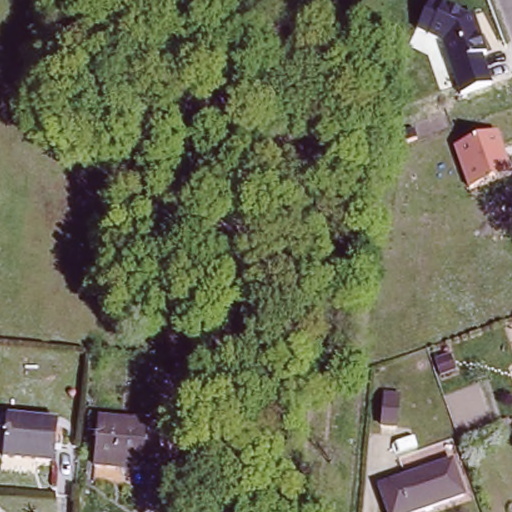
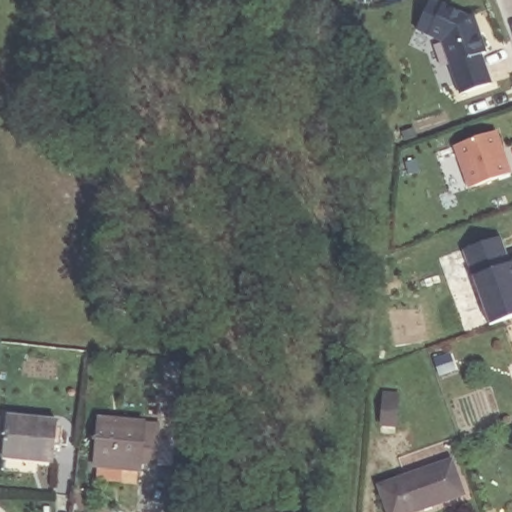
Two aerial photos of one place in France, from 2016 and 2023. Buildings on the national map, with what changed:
unchanged [(440,43),(415,29),(429,0),(430,0),(467,17),(475,14),(483,40),(479,41),(492,84),(457,93),(440,43)]
unchanged [(498,130),(512,175),(466,190),(452,145),(498,130)]
new [(512,259),(512,314),(490,321),(463,245),(501,232),(512,259)]
unchanged [(449,349),(454,365),(439,370),(434,354),(449,349)]
unchanged [(381,419),(384,393),(384,384),(402,386),(401,395),(399,420),(381,419)]
unchanged [(62,421),(60,460),(9,457),(11,418),(62,421)]
unchanged [(150,422),(148,461),(135,460),(134,468),(95,466),(97,419),(150,422)]
unchanged [(468,490),(410,512),(398,512),(387,484),(456,458),(468,490)]

